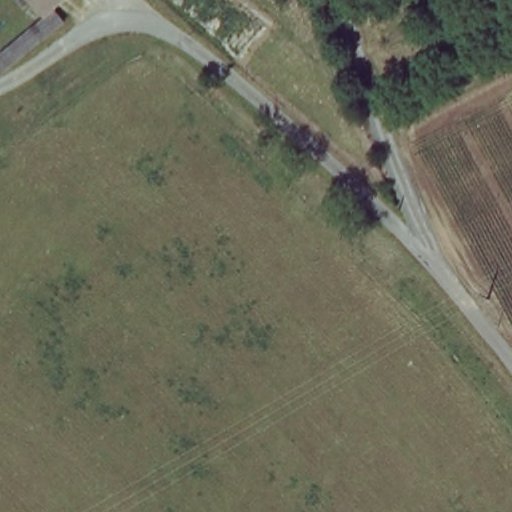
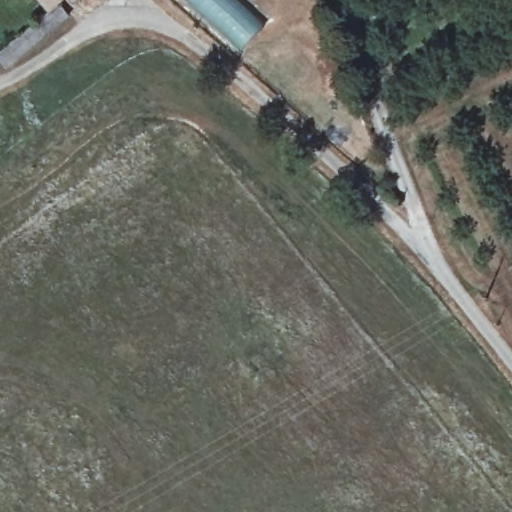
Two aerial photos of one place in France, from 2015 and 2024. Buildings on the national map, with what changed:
unchanged [(38,0),(57,0),(46,10),(38,0)]
demolished [(184,0),(241,0),(277,31),(250,57),(184,0)]

